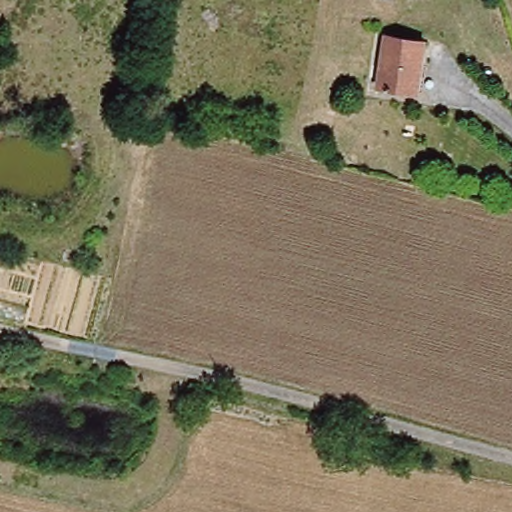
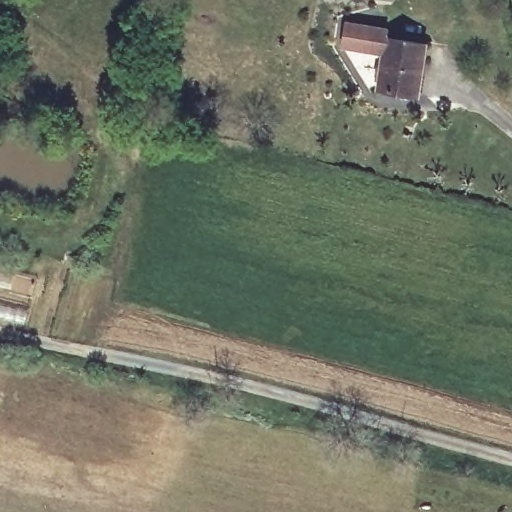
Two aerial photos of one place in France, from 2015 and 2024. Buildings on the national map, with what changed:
new [(392,26),(391,39),(388,55),(340,49),(343,20),(392,26)]
unchanged [(425,45),(416,95),(382,89),(391,39),(425,45)]

